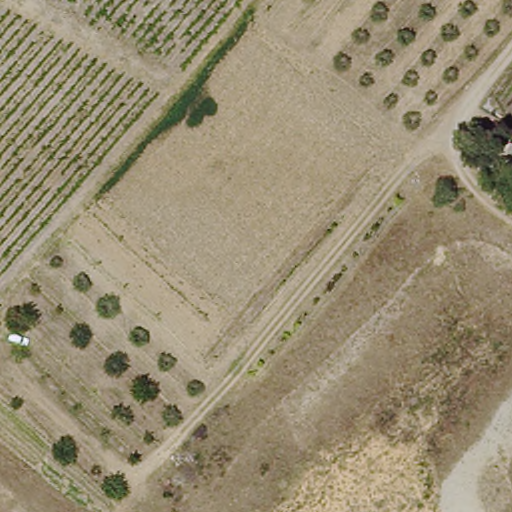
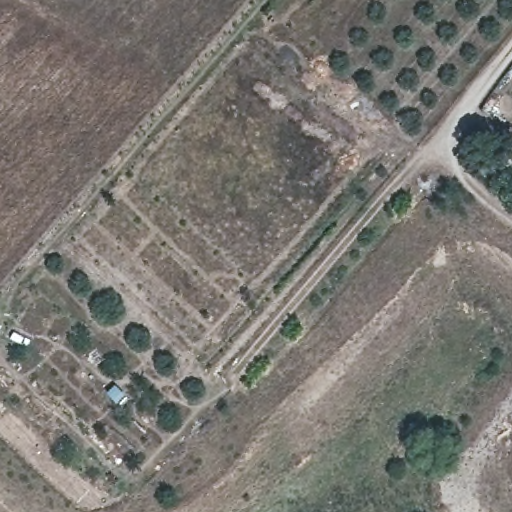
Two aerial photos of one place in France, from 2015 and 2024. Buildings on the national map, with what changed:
unchanged [(512,148),(512,172),(495,159),(507,144),(512,148)]

